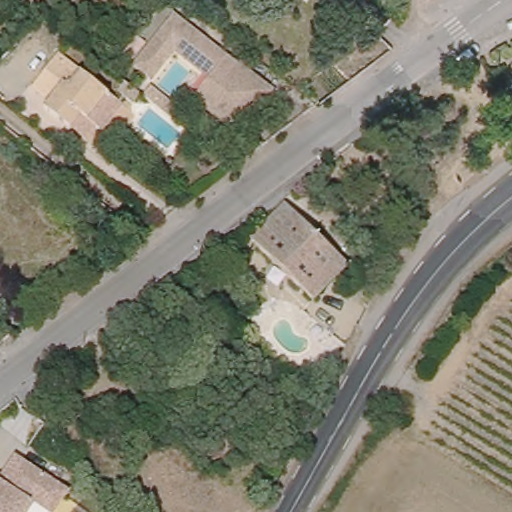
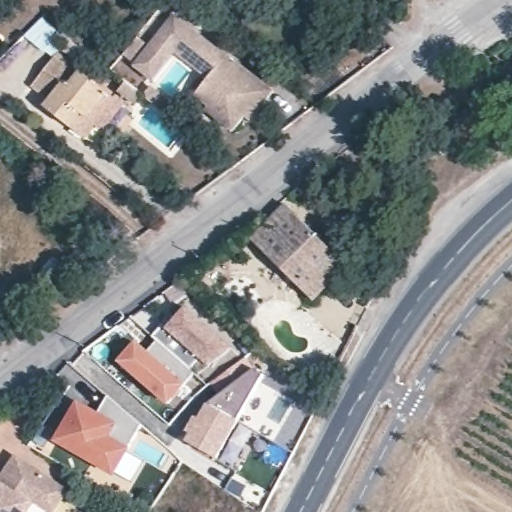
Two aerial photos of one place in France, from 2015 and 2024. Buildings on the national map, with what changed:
unchanged [(251,80),(255,76),(278,95),(262,112),(257,107),(233,133),(216,122),(223,115),(201,98),(211,87),(174,55),(153,76),(137,61),(179,17),(251,80)]
unchanged [(69,117),(49,97),(51,92),(33,76),(58,52),(75,70),(83,66),(120,102),(100,124),(94,121),(85,131),(69,117)]
unchanged [(309,299),(253,241),(288,211),(349,269),(309,299)]
new [(164,323),(173,316),(176,318),(186,307),(223,339),(200,357),(191,348),(181,360),(158,340),(153,336),(164,323)]
new [(181,360),(185,363),(158,393),(131,370),(121,361),(137,342),(148,352),(158,340),(181,360)]
new [(255,370),(265,376),(239,421),(217,460),(187,442),(190,435),(186,432),(196,417),(199,419),(208,405),(220,396),(212,383),(246,358),(255,370)]
new [(79,402),(86,407),(98,413),(109,395),(141,423),(115,472),(58,440),(73,412),(79,402)]
unchanged [(67,487),(51,509),(30,497),(21,512),(0,512),(0,475),(15,453),(67,487)]

